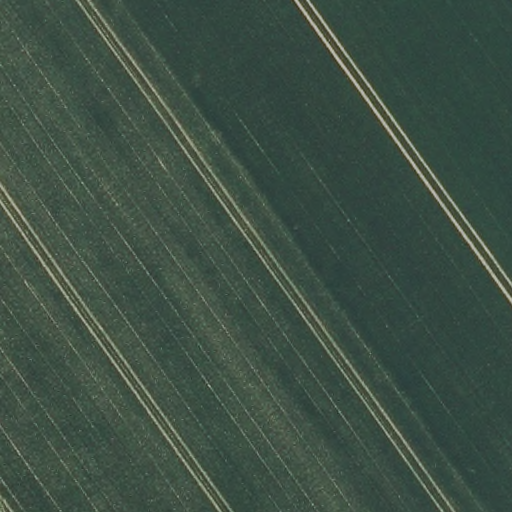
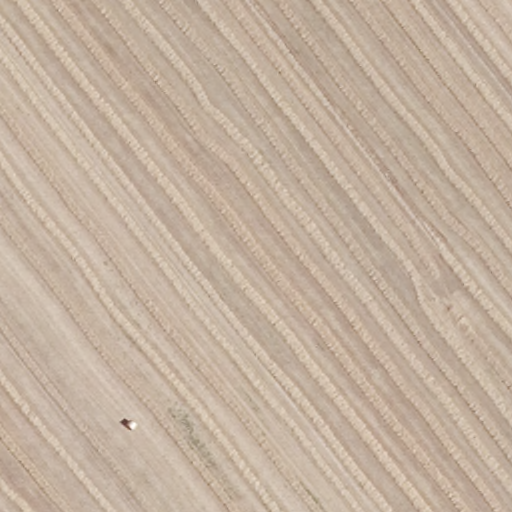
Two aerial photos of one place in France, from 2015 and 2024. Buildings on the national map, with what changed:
[]

